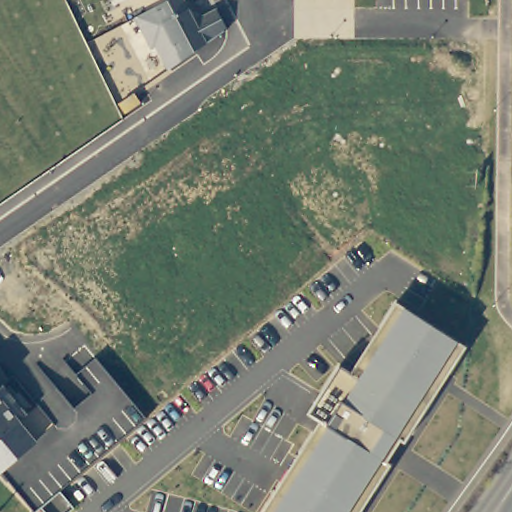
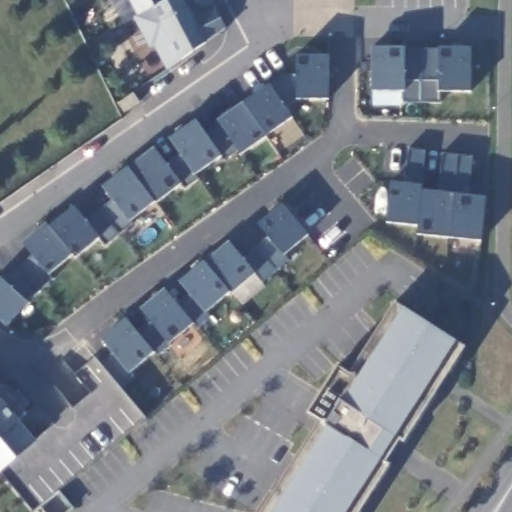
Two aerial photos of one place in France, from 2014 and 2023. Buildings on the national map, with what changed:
new [(155,9),(139,16),(130,0),(171,0),(155,9)]
unchanged [(155,47),(150,49),(135,18),(155,9),(171,0),(184,0),(193,19),(215,8),(227,30),(168,70),(155,47)]
new [(470,91),(439,91),(439,102),(404,101),(405,90),(371,92),(372,46),(403,46),(439,47),(471,46),(470,91)]
new [(296,100),(286,106),(292,116),(240,154),(237,150),(225,160),(222,157),(195,175),(196,180),(184,187),(180,184),(130,220),(105,245),(100,236),(75,258),(71,254),(49,274),(53,279),(28,301),(7,325),(0,319),(0,276),(3,278),(31,256),(21,245),(47,223),(50,226),(74,205),(85,219),(113,200),(101,185),(154,146),(165,161),(179,152),(170,137),(197,120),(205,134),(220,125),(217,120),(270,84),(284,75),(298,75),(298,55),(329,55),(328,99),(296,100)]
new [(417,234),(418,226),(387,223),(391,181),(404,182),(409,149),(426,151),(422,184),(422,189),(437,190),(442,154),(471,157),(468,194),(487,196),(481,241),(417,234)]
new [(284,255),(288,260),(262,282),(255,273),(206,312),(210,316),(199,326),(194,323),(169,343),(170,346),(159,355),(154,352),(129,372),(134,376),(120,385),(102,362),(110,351),(102,340),(126,317),(139,333),(151,322),(140,310),(164,289),(177,305),(190,295),(179,281),(205,260),(207,262),(229,242),(244,258),(270,239),(258,224),(283,205),(308,235),(284,255)]
unchanged [(307,412),(338,365),(352,375),(398,303),(404,306),(458,342),(465,346),(404,442),(400,441),(386,463),(389,465),(359,512),(262,512),(319,421),(307,412)]
unchanged [(26,412),(19,420),(36,441),(0,473),(0,392),(6,386),(26,412)]

